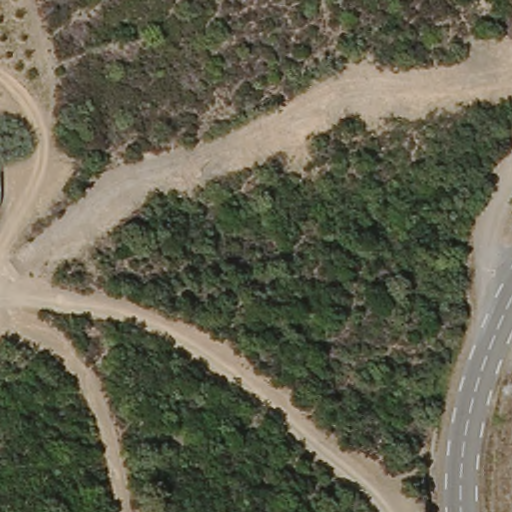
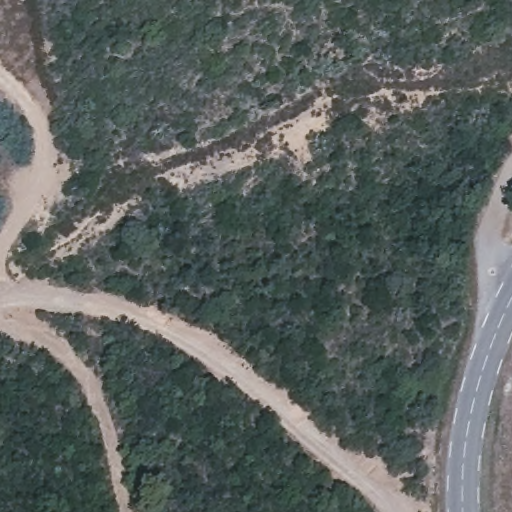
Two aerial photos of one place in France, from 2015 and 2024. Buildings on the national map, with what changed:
unchanged [(2,205),(0,205),(0,164),(2,164),(2,205)]

